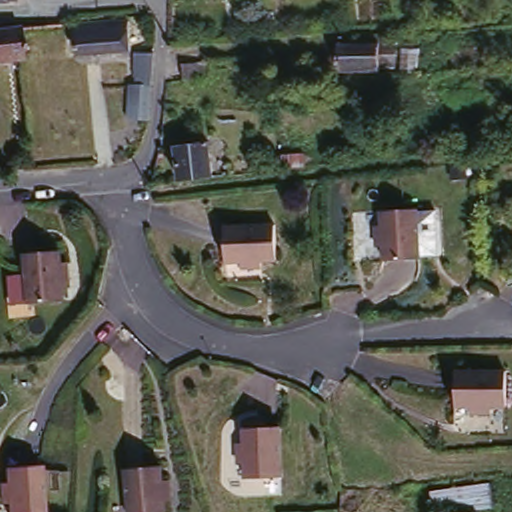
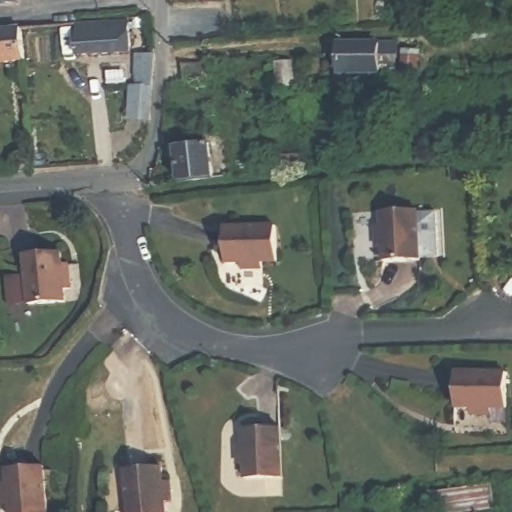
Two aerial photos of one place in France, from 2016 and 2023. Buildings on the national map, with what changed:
unchanged [(0,4),(0,0),(9,0),(9,4),(0,4)]
unchanged [(128,25),(131,56),(79,60),(76,29),(128,25)]
unchanged [(0,37),(25,35),(28,65),(0,68),(0,37)]
unchanged [(396,43),(397,64),(343,67),(342,46),(396,43)]
unchanged [(149,125),(129,123),(131,89),(136,90),(138,59),(154,60),(149,125)]
unchanged [(183,65),(210,61),(212,81),(185,84),(183,65)]
unchanged [(294,80),(279,81),(277,61),(293,61),(294,80)]
unchanged [(213,179),(179,182),(175,146),(209,143),(213,179)]
unchanged [(149,178),(150,170),(154,170),(153,178),(149,178)]
unchanged [(436,212),(437,254),(428,258),(415,258),(415,260),(379,261),(379,247),(374,247),(373,228),(379,228),(378,212),(415,212),(436,212)]
unchanged [(274,262),(259,262),(259,268),(238,270),(238,264),(224,264),(222,229),(272,226),(274,262)]
unchanged [(63,265),(69,265),(71,289),(65,290),(66,302),(31,305),(26,255),(62,252),(63,265)]
unchanged [(509,372),(508,408),(494,408),(494,414),(473,414),(473,408),(459,408),(459,372),(509,372)]
unchanged [(283,482),(247,484),(247,469),(240,469),(239,449),(245,449),(245,434),(280,431),(283,482)]
unchanged [(47,512),(12,512),(11,507),(5,508),(4,488),(9,488),(9,474),(44,471),(47,512)]
unchanged [(159,471),(159,485),(165,484),(166,507),(161,507),(162,512),(125,512),(123,474),(159,471)]
unchanged [(429,494),(491,485),(497,512),(431,512),(429,494)]

